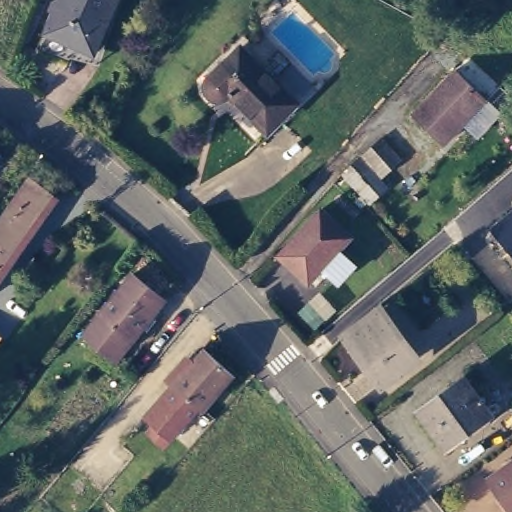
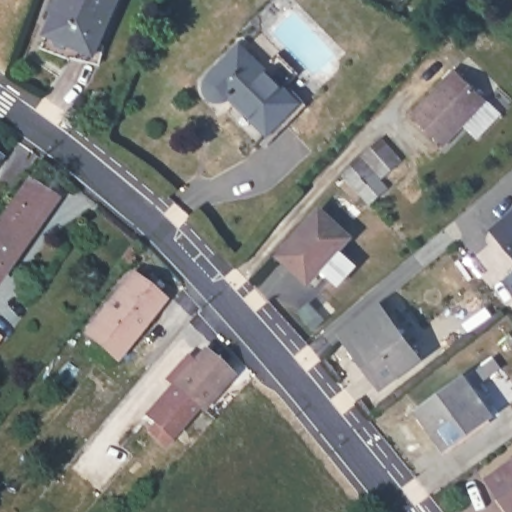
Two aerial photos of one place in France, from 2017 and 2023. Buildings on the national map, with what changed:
unchanged [(53,37),(54,36),(46,33),(60,2),(67,5),(69,0),(122,0),(98,57),(53,37)]
unchanged [(269,62),(278,53),(289,63),(272,79),(297,103),(267,132),(230,94),(227,96),(222,99),(219,99),(215,99),(212,97),(210,95),(208,91),(208,88),(207,82),(208,81),(212,76),(240,48),(244,51),(250,44),(269,62)]
unchanged [(459,70),(490,101),(449,145),(417,115),(459,70)]
unchanged [(386,139),(406,162),(387,178),(367,155),(386,139)]
unchanged [(365,157),(392,187),(374,203),(347,174),(365,157)]
unchanged [(52,197),(0,273),(0,223),(30,181),(52,197)]
unchanged [(512,209),(512,254),(490,228),(512,209)]
unchanged [(320,210),(350,237),(309,283),(279,256),(320,210)]
unchanged [(132,279),(165,305),(117,365),(85,339),(132,279)]
unchanged [(352,330),(385,305),(421,353),(387,379),(352,330)]
unchanged [(233,375),(201,411),(173,386),(185,372),(181,369),(187,363),(190,366),(205,349),(233,375)]
unchanged [(472,433),(445,453),(419,416),(464,383),(479,405),(482,403),(484,406),(482,408),(486,414),(490,420),(472,433)]
unchanged [(278,404),(267,391),(274,387),(284,399),(282,400),(278,404)]
unchanged [(183,422),(172,434),(148,412),(160,399),(183,422)]
unchanged [(502,491),(499,493),(497,488),(499,486),(490,474),(512,458),(512,505),(502,491)]

